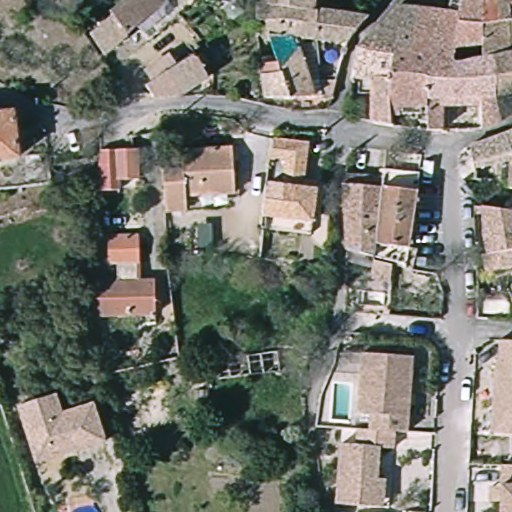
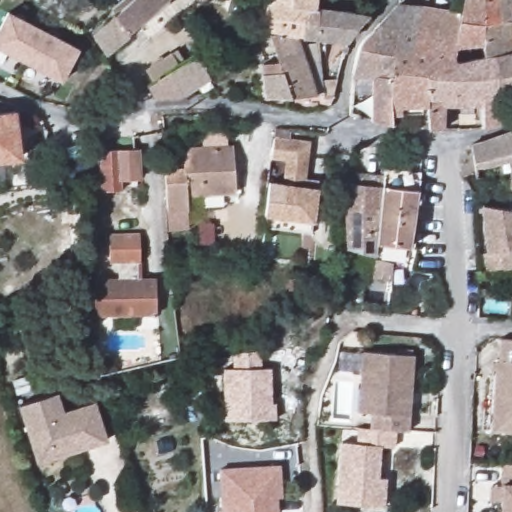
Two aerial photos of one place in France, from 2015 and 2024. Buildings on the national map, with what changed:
unchanged [(133,0),(166,0),(168,2),(99,56),(85,37),(133,0)]
unchanged [(276,66),(277,64),(276,64),(276,59),(273,47),(271,40),(269,30),(268,26),(259,21),(259,20),(258,13),(259,12),(259,11),(260,4),(261,3),(261,0),(316,0),(316,15),(342,19),(366,21),(351,47),(338,45),(320,43),(302,41),(295,40),(308,69),(317,100),(267,101),(265,76),(279,74),(276,66)]
unchanged [(512,0),(512,60),(507,61),(494,63),(494,61),(492,49),(494,5),(502,0),(512,0)]
unchanged [(482,126),(479,114),(472,115),(472,109),(444,106),(443,134),(430,133),(431,121),(413,119),(414,93),(417,62),(417,55),(419,36),(421,16),(434,17),(440,22),(468,22),(471,4),(488,5),(494,5),(492,49),(494,61),(494,63),(507,61),(504,108),(503,121),(482,126)]
new [(76,48),(60,80),(0,51),(0,22),(4,13),(76,48)]
unchanged [(402,50),(379,30),(397,14),(421,16),(419,36),(417,55),(417,62),(402,50)]
unchanged [(398,89),(358,81),(361,44),(379,30),(402,50),(398,89)]
unchanged [(156,103),(146,91),(191,53),(211,75),(182,101),(156,103)]
unchanged [(512,60),(512,108),(504,108),(507,61),(512,60)]
unchanged [(412,130),(394,127),(396,106),(407,108),(406,118),(413,119),(412,130)]
unchanged [(0,161),(0,115),(25,116),(14,162),(0,161)]
unchanged [(485,165),(472,167),(469,145),(504,137),(512,134),(512,186),(507,185),(507,180),(506,156),(484,158),(485,165)]
unchanged [(316,191),(314,224),(264,220),(264,186),(281,188),(282,162),(266,160),(267,141),(304,145),(303,181),(317,183),(316,191)]
unchanged [(181,150),(231,144),(238,193),(189,196),(191,208),(168,211),(163,170),(184,168),(181,150)]
unchanged [(124,189),(102,189),(101,146),(136,146),(143,182),(128,184),(124,189)]
unchanged [(373,225),(371,236),(362,234),(343,229),(343,194),(343,163),(381,170),(373,225)]
unchanged [(407,231),(373,225),(381,170),(417,176),(408,228),(407,231)]
unchanged [(478,255),(482,254),(478,229),(477,206),(512,212),(512,267),(496,269),(481,272),(478,255)]
unchanged [(141,258),(142,283),(160,283),(159,314),(103,312),(104,281),(123,281),(123,261),(115,261),(115,234),(145,235),(145,258),(141,258)]
unchanged [(495,406),(498,358),(501,357),(502,334),(512,335),(512,431),(501,430),(494,430),(495,406)]
unchanged [(359,350),(388,350),(409,352),(408,369),(405,430),(392,429),(369,429),(369,411),(356,411),(357,389),(359,350)]
new [(233,369),(233,353),(261,352),(261,369),(271,368),(273,403),(276,403),(277,419),(227,420),(223,368),(233,369)]
unchanged [(108,441),(35,464),(15,405),(58,392),(63,410),(94,401),(108,441)]
unchanged [(384,507),(376,507),(341,505),(342,441),(358,442),(358,428),(369,429),(392,429),(391,447),(378,447),(377,478),(386,478),(384,507)]
new [(277,512),(222,512),(220,470),(279,466),(283,497),(276,498),(277,512)]
unchanged [(499,502),(487,501),(488,486),(499,487),(501,466),(512,466),(512,512),(499,512),(499,502)]

